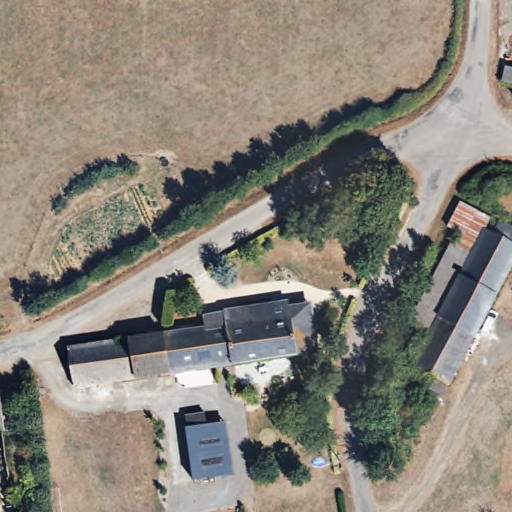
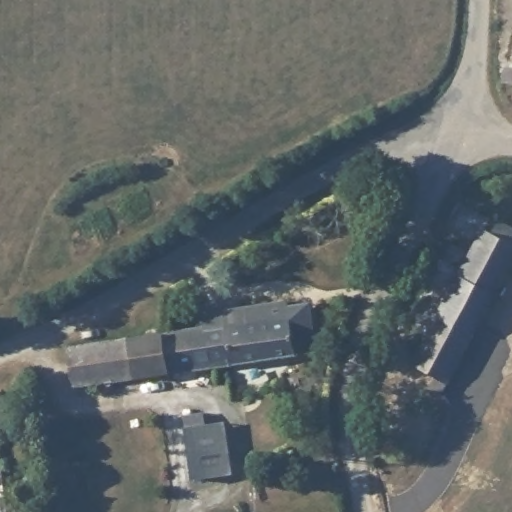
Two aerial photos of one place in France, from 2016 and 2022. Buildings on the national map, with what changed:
unchanged [(511,66),(512,66),(512,83),(509,83),(511,66)]
unchanged [(425,378),(407,368),(411,362),(406,360),(422,331),(402,320),(417,294),(421,296),(448,244),(452,245),(458,233),(443,224),(456,201),(485,217),(479,228),(485,231),(488,225),(495,229),(499,222),(512,228),(512,267),(506,278),(512,282),(512,285),(505,298),(497,293),(486,314),(447,384),(429,373),(425,378)]
unchanged [(282,311),(304,307),(307,320),(313,356),(293,359),(294,360),(209,372),(202,330),(222,327),(220,315),(281,306),(282,311)]
unchanged [(158,336),(157,329),(171,327),(172,334),(202,330),(209,372),(70,392),(65,359),(72,349),(158,336)]
unchanged [(3,393),(6,420),(0,420),(0,393),(3,393)]
unchanged [(208,413),(208,424),(226,422),(234,475),(191,481),(185,415),(208,413)]

